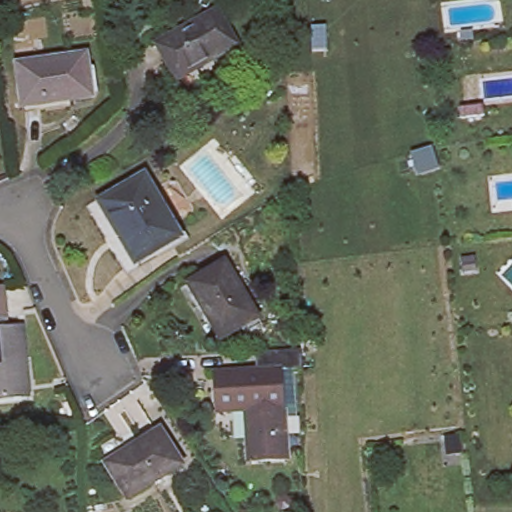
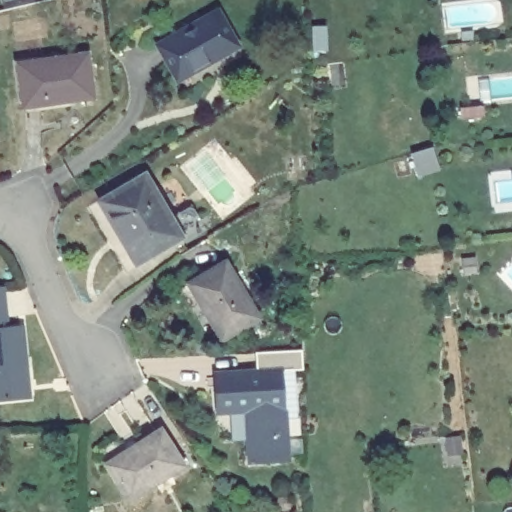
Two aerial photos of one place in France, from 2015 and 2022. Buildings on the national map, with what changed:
unchanged [(235,50),(190,76),(187,71),(173,79),(155,49),(215,14),(235,50)]
unchanged [(91,98),(22,109),(15,67),(84,56),(91,98)]
unchanged [(184,240),(139,267),(102,205),(147,178),(184,240)]
unchanged [(257,321),(220,344),(185,288),(222,266),(257,321)]
unchanged [(2,287),(5,326),(23,327),(29,402),(0,404),(0,288),(2,287)]
unchanged [(254,468),(252,447),(250,417),(220,419),(217,382),(260,379),(259,360),(302,356),(303,377),(285,378),(289,445),(290,466),(254,468)]
unchanged [(175,469),(121,503),(99,468),(152,434),(175,469)]

